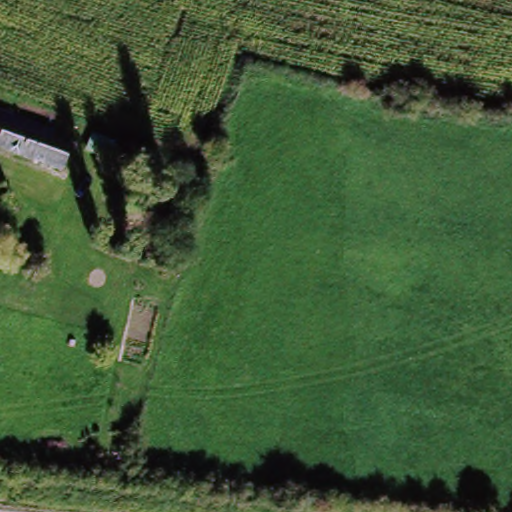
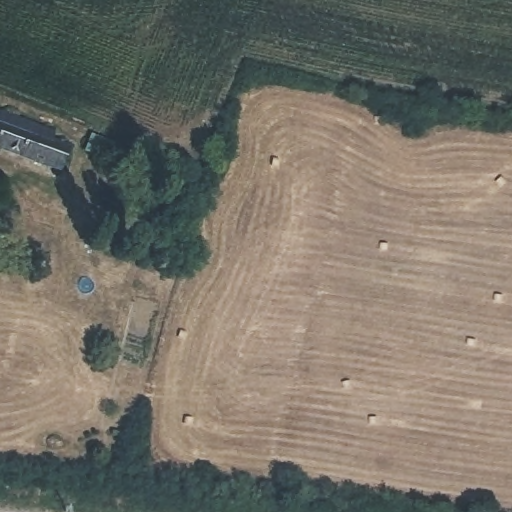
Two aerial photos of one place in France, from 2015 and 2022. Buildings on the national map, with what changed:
unchanged [(0,149),(0,117),(67,146),(65,153),(71,157),(63,177),(0,149)]

